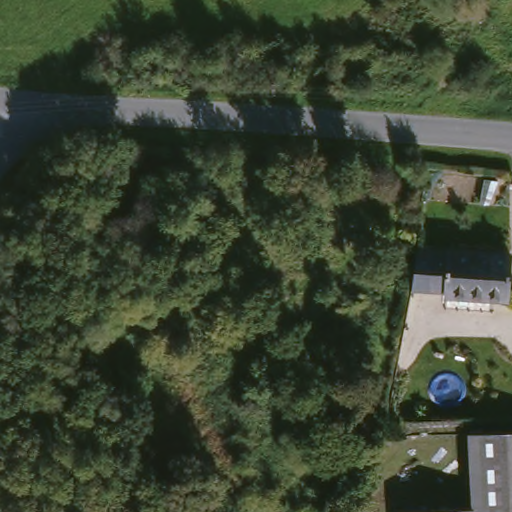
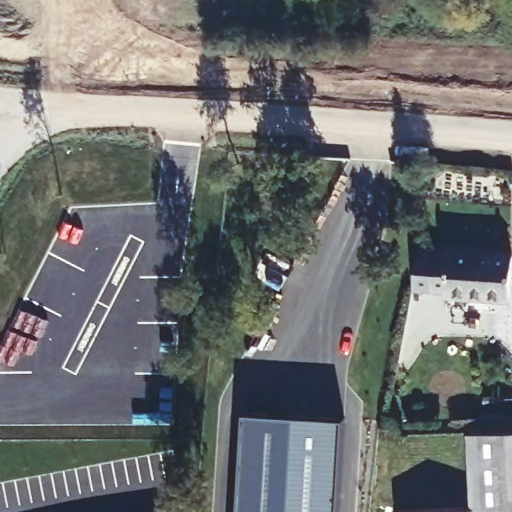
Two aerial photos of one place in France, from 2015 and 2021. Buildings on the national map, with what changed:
unchanged [(510,257),(510,298),(416,292),(418,261),(419,250),(510,257)]
new [(245,412),(345,417),(340,512),(239,512),(245,412)]
unchanged [(392,510),(467,504),(465,428),(506,427),(512,427),(512,512),(393,512),(392,510)]

